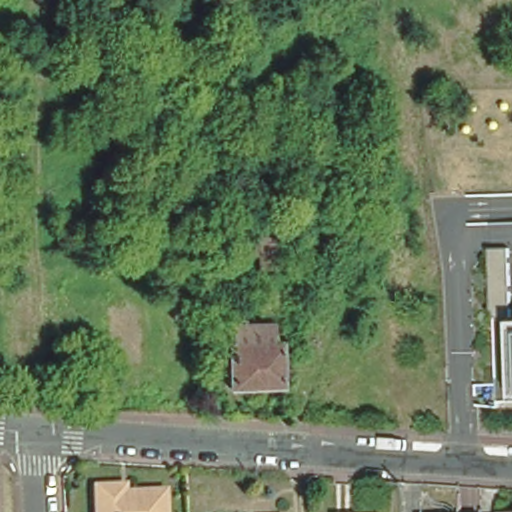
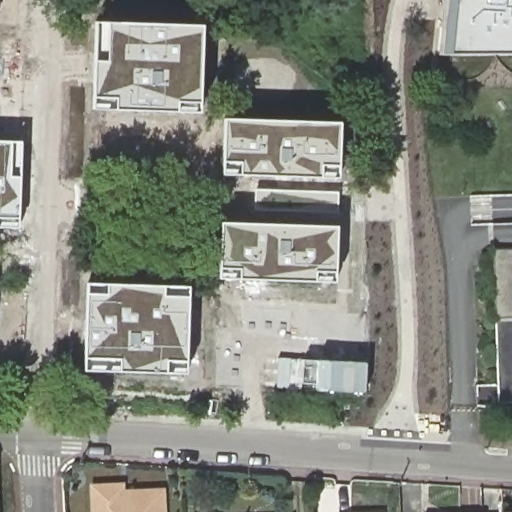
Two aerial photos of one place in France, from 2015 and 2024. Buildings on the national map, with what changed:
new [(437,54),(444,0),(512,0),(512,54),(437,54)]
new [(92,109),(96,21),(204,25),(199,112),(92,109)]
new [(341,122),(337,179),(221,175),(222,118),(341,122)]
new [(0,140),(22,140),(18,228),(0,227),(0,140)]
new [(334,282),(217,277),(221,221),(252,223),(255,189),(339,192),(337,225),(334,282)]
demolished [(279,255),(315,255),(315,266),(303,266),(303,300),(280,300),(280,316),(249,316),(247,216),(280,216),(279,255)]
new [(186,373),(85,370),(87,281),(190,285),(186,373)]
demolished [(232,345),(232,327),(268,326),(268,345),(278,345),(279,390),(227,390),(227,344),(232,345)]
unchanged [(119,495),(161,492),(162,512),(93,512),(92,488),(119,486),(119,495)]
unchanged [(512,508),(512,512),(500,512),(500,507),(512,508)]

